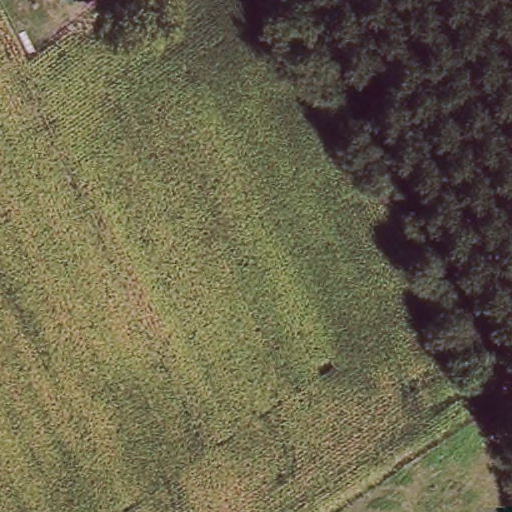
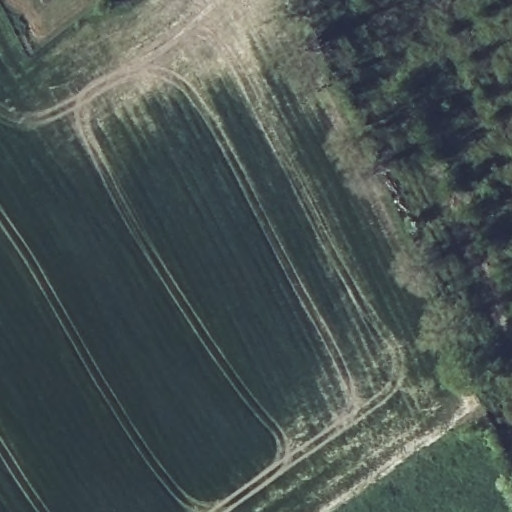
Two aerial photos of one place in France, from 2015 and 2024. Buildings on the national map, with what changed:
[]

